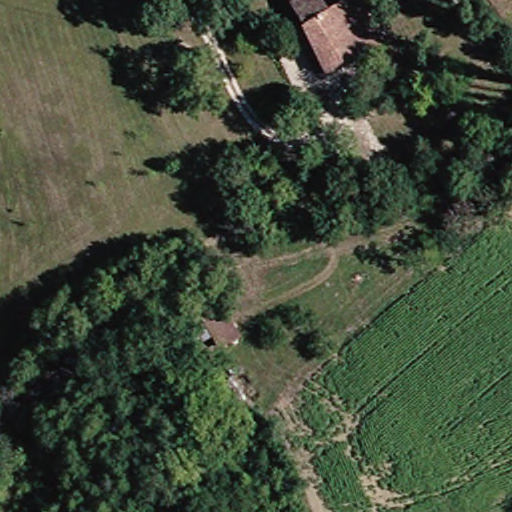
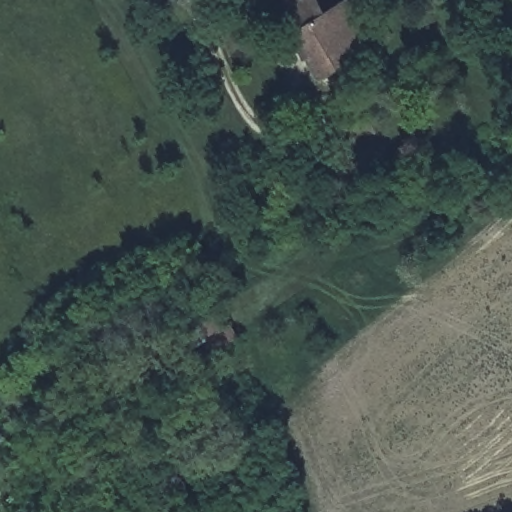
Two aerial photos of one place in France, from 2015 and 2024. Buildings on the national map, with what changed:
unchanged [(287,24),(304,18),(293,1),(295,0),(313,0),(319,9),(332,0),(344,0),(371,45),(315,73),(287,24)]

